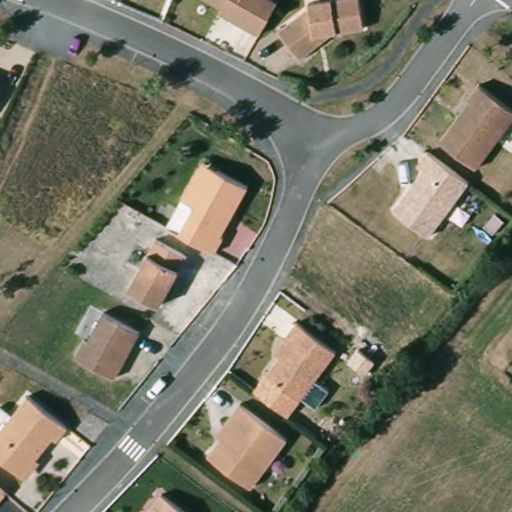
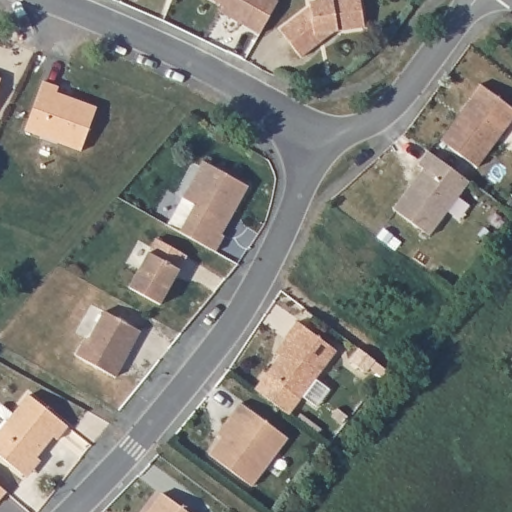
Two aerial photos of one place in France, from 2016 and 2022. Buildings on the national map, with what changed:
unchanged [(263,34),(221,12),(224,5),(216,0),(277,0),(279,1),(263,34)]
unchanged [(280,26),(310,4),(310,0),(362,0),(366,24),(334,29),(317,42),(302,54),(280,26)]
unchanged [(0,76),(0,73),(1,73),(0,76)]
new [(40,78),(56,83),(54,89),(94,104),(79,148),(22,127),(40,78)]
unchanged [(471,98),(469,96),(480,82),(512,106),(512,119),(477,165),(441,139),(458,115),(471,98)]
unchanged [(414,164),(425,150),(465,182),(423,235),(389,208),(407,184),(413,177),(419,168),(414,164)]
unchanged [(215,234),(208,248),(173,227),(189,200),(177,193),(193,165),(198,156),(213,165),(242,181),(225,209),(213,233),(215,234)]
unchanged [(120,280),(149,232),(179,250),(151,299),(120,280)]
unchanged [(79,335),(83,337),(99,308),(134,328),(109,374),(70,352),(79,335)]
unchanged [(275,354),(285,340),(284,339),(296,322),(335,351),(300,399),(266,374),(279,357),(275,354)]
unchanged [(63,428),(52,442),(48,439),(18,477),(0,462),(0,425),(23,397),(63,428)]
unchanged [(287,439),(250,487),(208,454),(220,438),(215,434),(229,417),(239,403),(287,439)]
unchanged [(0,501),(0,486),(8,493),(0,501)]
unchanged [(156,494),(182,512),(143,512),(156,494)]

